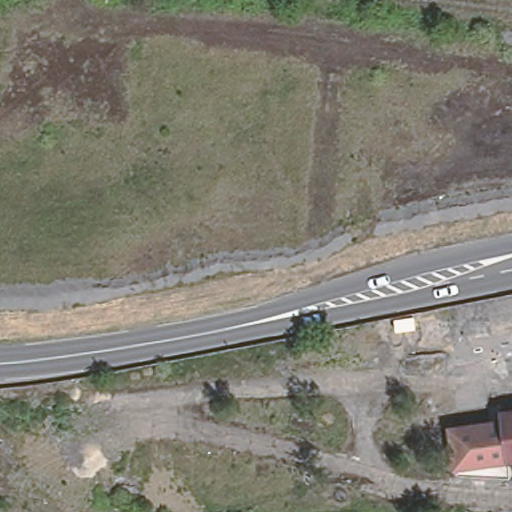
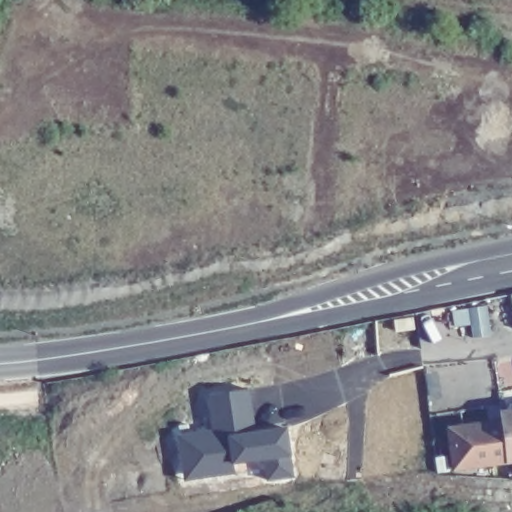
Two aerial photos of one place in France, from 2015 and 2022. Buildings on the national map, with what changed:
new [(250,390),(255,430),(288,426),(294,478),(267,481),(265,462),(233,464),(233,475),(185,481),(179,435),(213,432),(207,395),(250,390)]
unchanged [(453,437),(506,430),(505,420),(512,420),(512,469),(511,470),(458,476),(453,437)]

